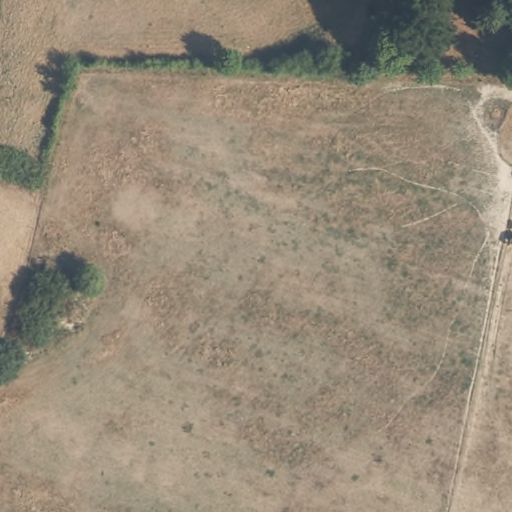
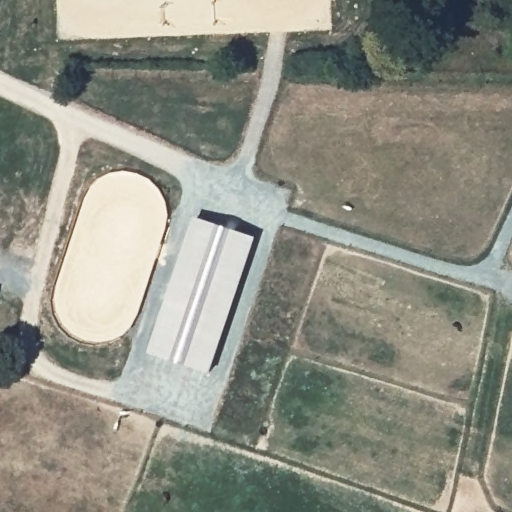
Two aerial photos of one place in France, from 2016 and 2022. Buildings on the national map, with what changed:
new [(192,220),(251,239),(209,374),(150,355),(192,220)]
unchanged [(0,287),(1,288),(0,291),(0,287)]

